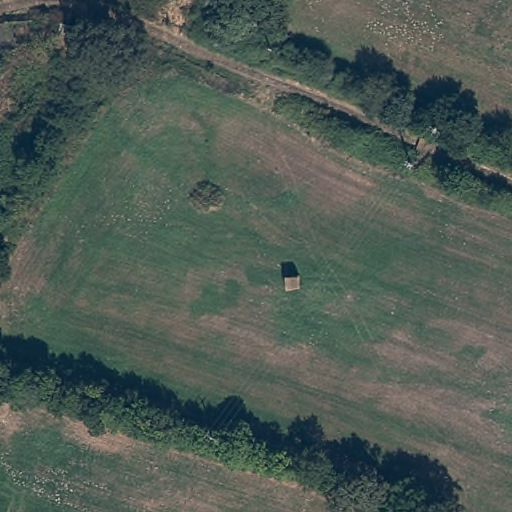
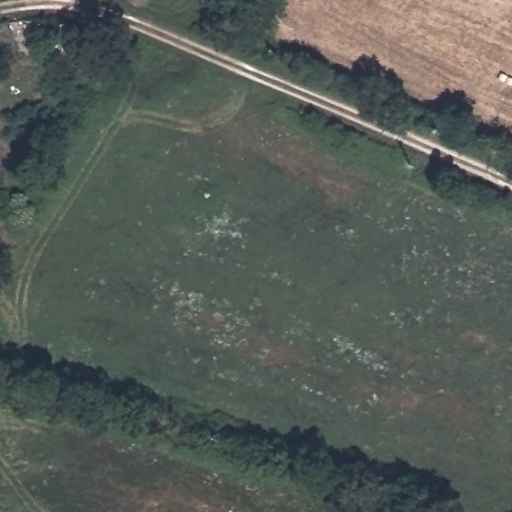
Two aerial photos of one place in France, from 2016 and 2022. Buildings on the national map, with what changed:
unchanged [(61,29),(100,40),(87,79),(49,66),(61,29)]

